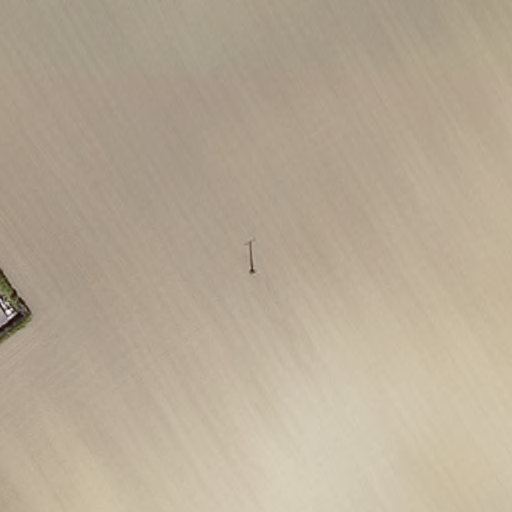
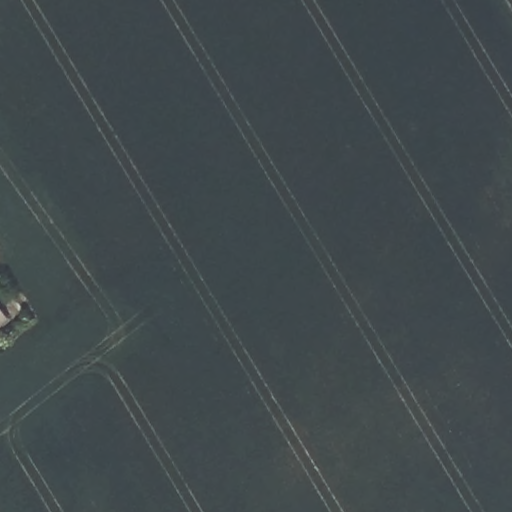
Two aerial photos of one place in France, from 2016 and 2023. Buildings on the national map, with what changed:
unchanged [(0,326),(0,311),(7,321),(0,326)]

